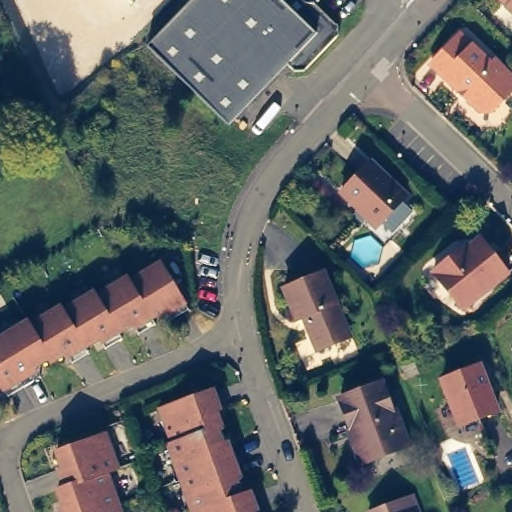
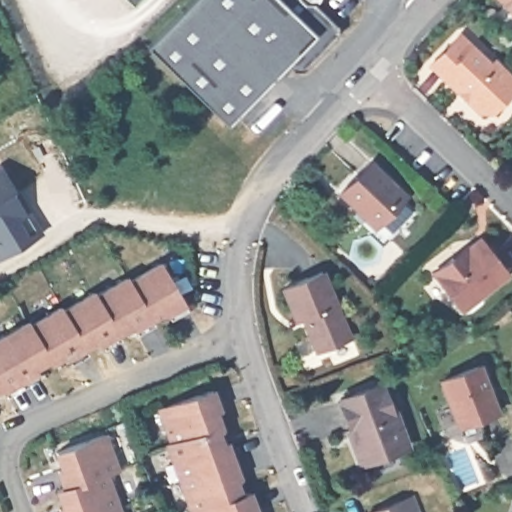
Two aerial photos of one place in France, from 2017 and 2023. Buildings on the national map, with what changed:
unchanged [(126,7),(120,0),(133,0),(126,7)]
unchanged [(190,0),(305,0),(306,1),(314,1),(339,24),(339,34),(304,70),(294,70),(288,63),(228,124),(146,45),(190,0)]
unchanged [(508,0),(512,0),(512,3),(508,0)]
unchanged [(497,57),(501,54),(512,64),(512,92),(501,104),(487,104),(474,93),(477,90),(468,82),(465,85),(436,58),(464,28),(497,57)]
unchanged [(365,150),(404,184),(400,188),(413,199),(387,226),(374,215),(364,206),(358,212),(349,204),(354,198),(336,181),(365,150)]
new [(0,172),(22,210),(25,208),(41,236),(0,260),(0,172)]
unchanged [(512,271),(466,307),(434,270),(454,255),(456,257),(482,236),(512,271)]
unchanged [(3,382),(1,378),(0,379),(0,329),(27,313),(29,317),(60,299),(63,303),(94,285),(96,288),(127,270),(129,274),(161,256),(184,297),(188,302),(188,303),(188,304),(171,313),(168,307),(165,303),(151,311),(156,317),(138,327),(134,321),(132,317),(118,325),(122,332),(105,342),(101,335),(98,332),(85,339),(89,346),(71,356),(68,350),(65,346),(50,355),(48,351),(34,359),(36,363),(40,369),(8,388),(3,382)]
unchanged [(299,319),(284,287),(324,271),(354,335),(321,349),(306,316),(299,319)]
unchanged [(475,363),(494,409),(457,423),(437,378),(475,363)]
unchanged [(391,411),(394,410),(408,444),(361,461),(351,439),(354,438),(337,397),(379,381),(391,411)]
unchanged [(221,403),(218,404),(224,421),(220,422),(226,437),(231,436),(245,471),(241,473),(247,488),(256,485),(264,504),(259,505),(262,512),(205,512),(203,506),(198,508),(169,438),(173,437),(161,402),(214,384),(221,403)]
unchanged [(64,499),(58,481),(65,479),(58,462),(63,460),(56,443),(105,426),(119,463),(108,467),(126,512),(65,512),(60,500),(64,499)]
unchanged [(409,490),(419,510),(413,512),(367,512),(364,506),(409,490)]

